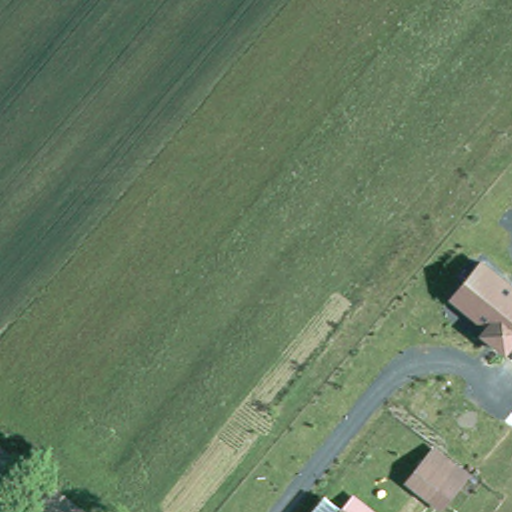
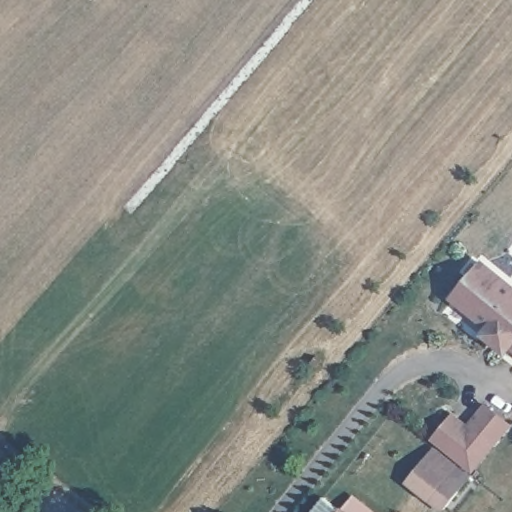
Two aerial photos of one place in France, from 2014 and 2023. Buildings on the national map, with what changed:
unchanged [(510,348),(507,352),(481,332),(485,327),(450,298),(482,259),(512,284),(512,349),(510,348)]
new [(468,427),(487,405),(510,425),(492,447),(472,471),(433,439),(453,415),(468,427)]
unchanged [(445,509),(410,481),(425,462),(433,452),(455,468),(453,469),(467,481),(445,509)]
unchanged [(362,512),(341,512),(350,502),(362,512)]

